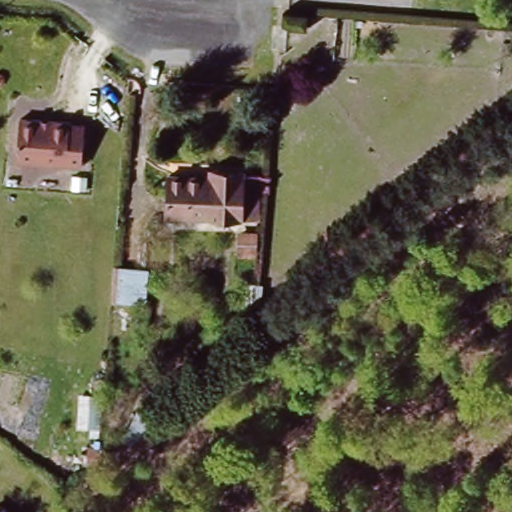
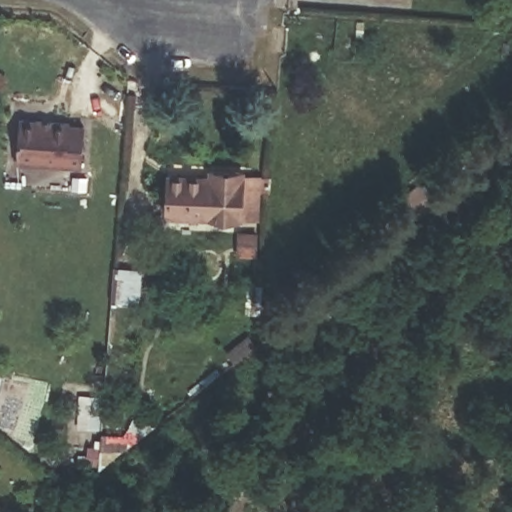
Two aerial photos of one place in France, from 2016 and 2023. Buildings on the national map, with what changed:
unchanged [(19,115),(70,116),(70,120),(86,120),(83,161),(15,158),(19,115)]
unchanged [(170,178),(208,179),(208,173),(241,174),(241,217),(170,215),(170,178)]
unchanged [(118,246),(135,248),(131,279),(115,278),(118,246)]
unchanged [(31,508),(26,512),(5,512),(0,508),(0,493),(5,487),(31,508)]

